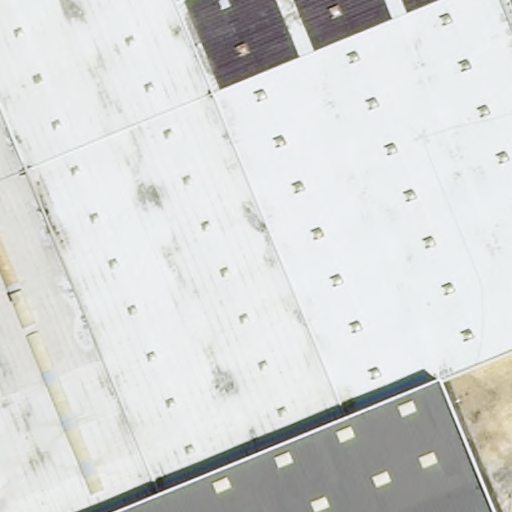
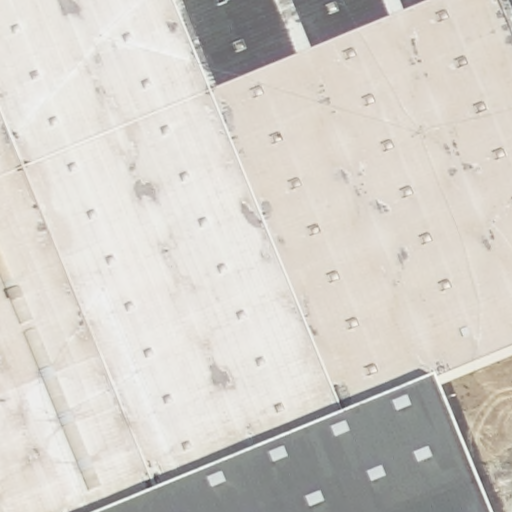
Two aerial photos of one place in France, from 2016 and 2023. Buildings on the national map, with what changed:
unchanged [(437,388),(487,512),(0,512),(0,0),(512,0),(512,356),(437,388)]

